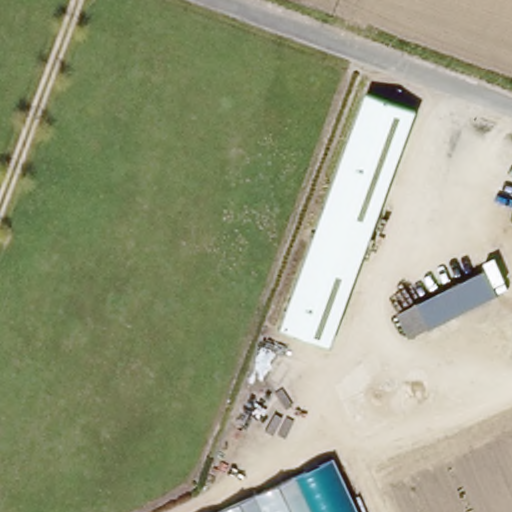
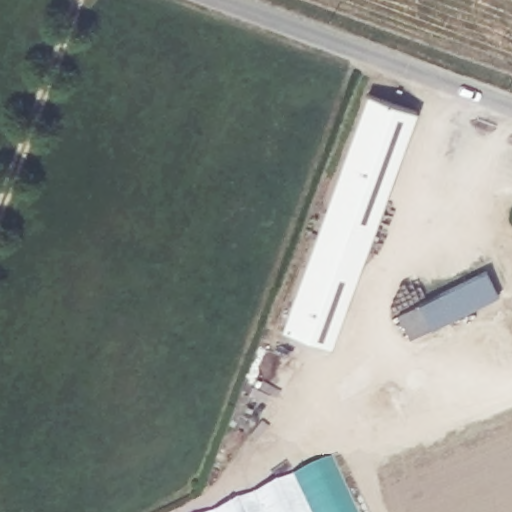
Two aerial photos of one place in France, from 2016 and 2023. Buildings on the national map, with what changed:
unchanged [(282,325),(370,90),(417,106),(334,342),(282,325)]
unchanged [(492,296),(400,342),(388,315),(479,272),(492,296)]
unchanged [(355,512),(216,512),(330,460),(355,512)]

